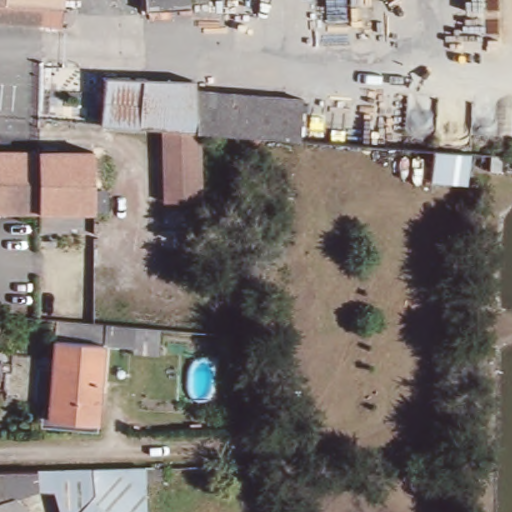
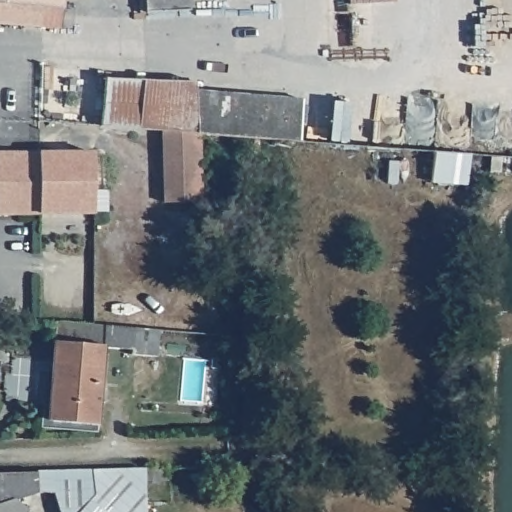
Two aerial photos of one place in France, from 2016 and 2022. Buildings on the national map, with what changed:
unchanged [(48,9),(46,29),(0,25),(0,0),(69,0),(68,10),(48,9)]
unchanged [(190,7),(149,10),(148,0),(190,0),(190,7)]
unchanged [(200,95),(201,136),(200,136),(165,134),(105,129),(109,80),(199,84),(200,95)]
unchanged [(242,97),(307,102),(304,145),(245,140),(218,137),(201,136),(200,95),(215,96),(242,97)]
unchanged [(204,206),(170,208),(165,134),(200,136),(204,206)]
unchanged [(97,155),(97,215),(0,216),(0,155),(97,155)]
unchanged [(466,188),(428,185),(430,155),(434,155),(468,157),(466,188)]
unchanged [(101,427),(57,424),(63,353),(59,353),(61,324),(140,330),(138,350),(109,348),(101,427)]
unchanged [(0,512),(0,475),(149,471),(150,512),(0,512)]

